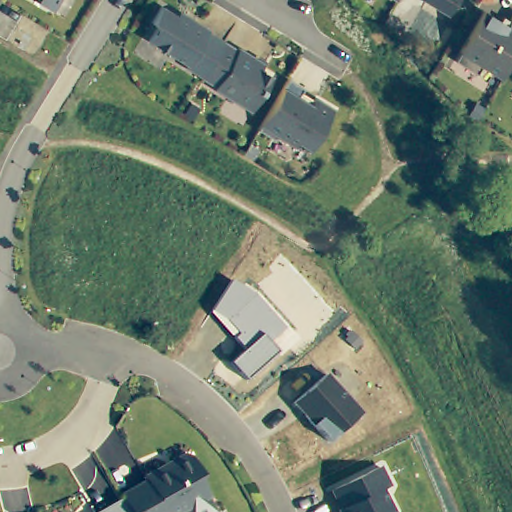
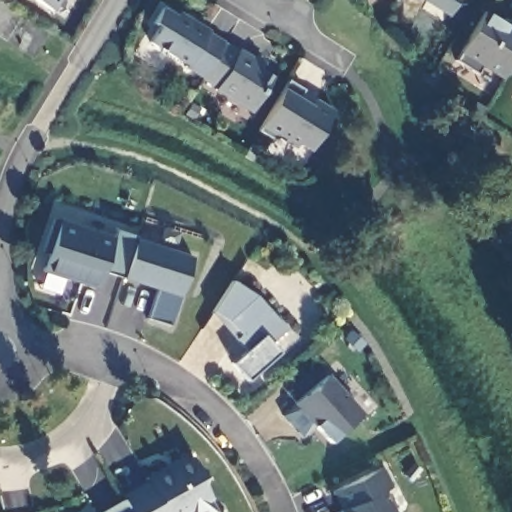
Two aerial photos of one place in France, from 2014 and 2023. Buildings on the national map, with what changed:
unchanged [(34,0),(58,0),(52,10),(34,0)]
unchanged [(181,58),(182,55),(144,32),(154,16),(147,12),(155,0),(161,0),(182,13),(186,9),(205,21),(204,22),(220,32),(219,32),(197,68),(181,58)]
unchanged [(426,0),(457,0),(448,14),(426,0)]
unchanged [(503,78),(483,65),(478,75),(456,60),(486,11),(503,22),(502,25),(508,29),(512,23),(512,64),(511,66),(503,78)]
unchanged [(219,32),(234,41),(235,40),(260,55),(257,60),(268,67),(247,102),(210,80),(212,77),(197,68),(219,32)]
unchanged [(512,67),(511,66),(512,64),(512,67)]
unchanged [(300,98),(312,105),(316,99),(335,110),(311,150),(298,142),(296,147),(280,138),(277,142),(273,140),(258,130),(280,95),(289,80),(305,90),(300,98)]
new [(123,277),(102,267),(95,287),(41,270),(56,217),(113,236),(114,230),(136,239),(123,277)]
new [(192,257),(179,295),(169,325),(146,317),(156,289),(123,277),(136,239),(192,257)]
unchanged [(230,363),(244,350),(209,313),(230,280),(256,295),(285,328),(270,342),(277,351),(246,380),(230,363)]
unchanged [(328,443),(292,401),(326,374),(362,413),(328,443)]
unchanged [(126,505),(122,498),(121,496),(147,481),(145,477),(162,467),(164,471),(174,466),(175,460),(184,455),(189,456),(201,476),(200,482),(208,497),(207,498),(216,512),(130,512),(126,505)]
unchanged [(330,490),(380,467),(389,485),(382,490),(394,512),(341,512),(330,490)]
unchanged [(126,505),(130,512),(99,512),(122,498),(126,505)]

